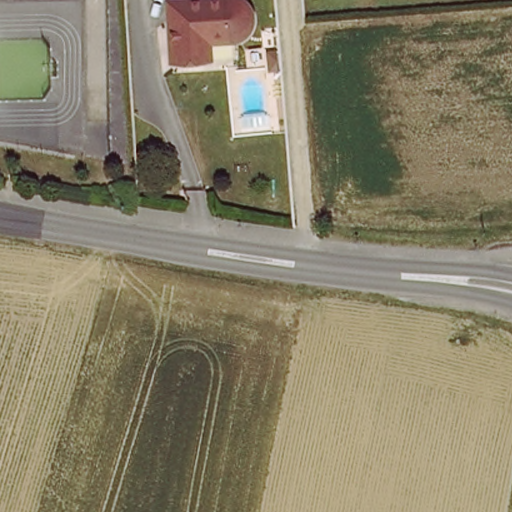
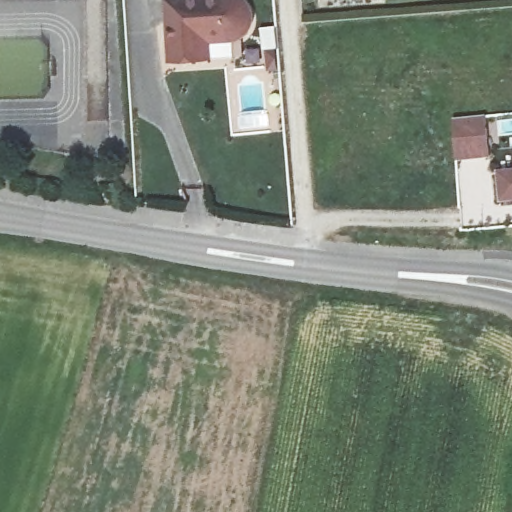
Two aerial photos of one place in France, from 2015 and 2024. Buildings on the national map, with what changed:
unchanged [(252,9),(251,15),(250,20),(247,26),(244,28),(240,31),(235,33),(208,35),(208,54),(168,55),(164,0),(248,0),(249,1),(252,9)]
new [(488,118),(491,160),(457,162),(455,121),(488,118)]
new [(512,171),(512,203),(502,205),(498,172),(512,171)]

